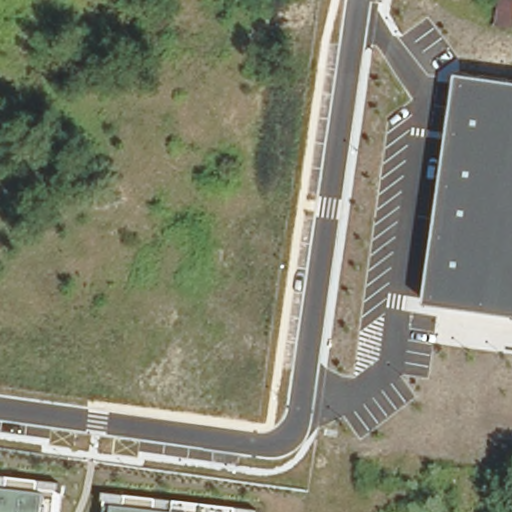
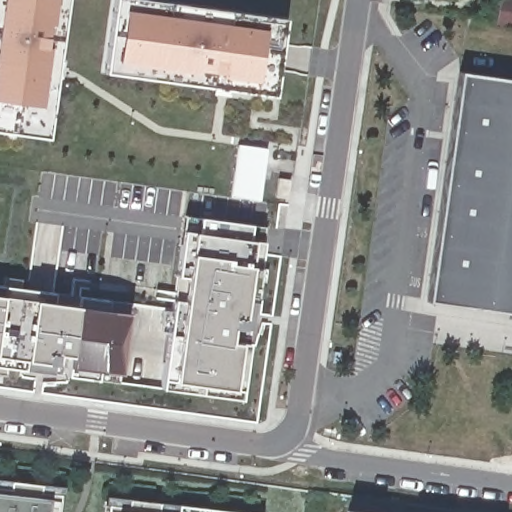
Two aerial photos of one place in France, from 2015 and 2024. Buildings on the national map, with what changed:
new [(0,132),(0,0),(67,0),(47,139),(0,132)]
new [(274,96),(103,73),(113,0),(147,0),(285,19),(274,96)]
unchanged [(493,29),(499,0),(512,0),(512,32),(493,29)]
unchanged [(427,302),(461,73),(512,80),(512,314),(427,302)]
new [(238,145),(267,149),(260,201),(231,197),(238,145)]
new [(250,345),(243,392),(233,390),(232,393),(209,390),(215,351),(199,349),(193,388),(171,384),(171,381),(163,380),(170,335),(161,333),(164,310),(173,311),(175,301),(183,302),(186,278),(176,277),(183,232),(185,216),(199,218),(251,226),(265,228),(263,243),(260,266),(262,266),(257,304),(254,303),(250,331),(241,330),(221,327),(219,340),(239,343),(250,345)]
new [(59,375),(53,374),(53,375),(24,370),(24,372),(8,370),(6,377),(0,376),(0,285),(1,286),(2,276),(20,278),(20,279),(27,280),(26,289),(53,292),(53,293),(79,297),(111,301),(129,304),(128,313),(123,344),(119,376),(118,384),(97,381),(66,377),(67,368),(69,357),(62,356),(59,375)]
unchanged [(0,478),(63,486),(61,512),(0,512),(0,478)]
unchanged [(107,497),(240,512),(105,512),(107,497)]

